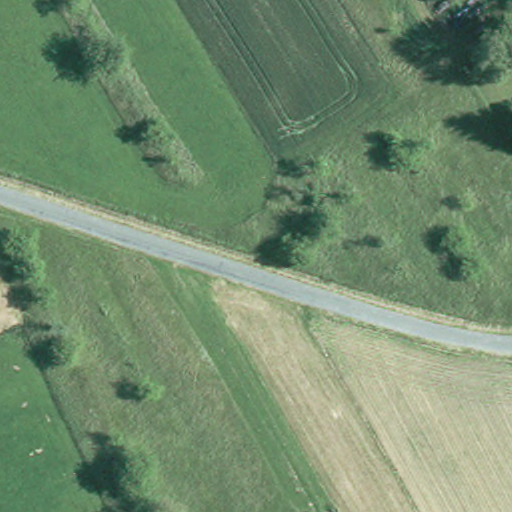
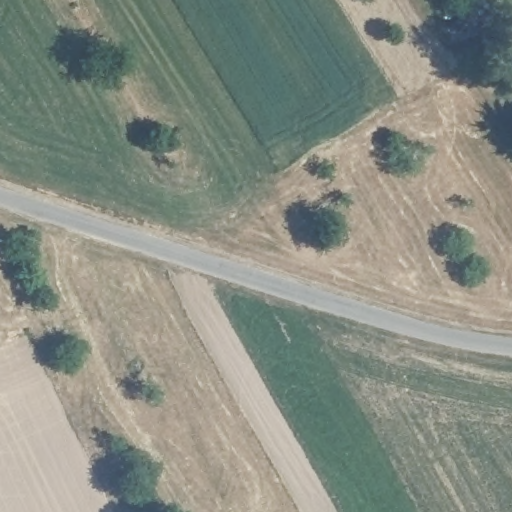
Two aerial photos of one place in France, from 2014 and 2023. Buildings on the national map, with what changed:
[]

